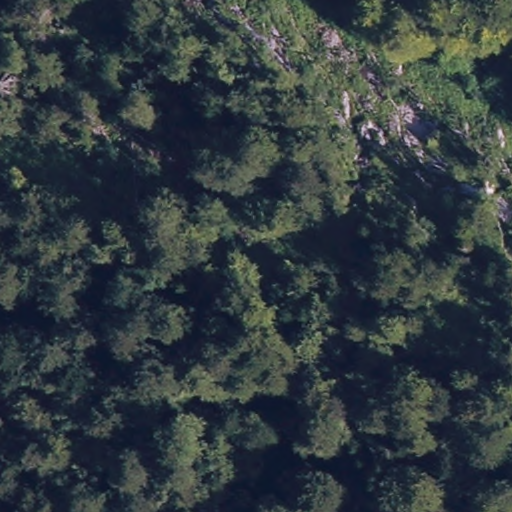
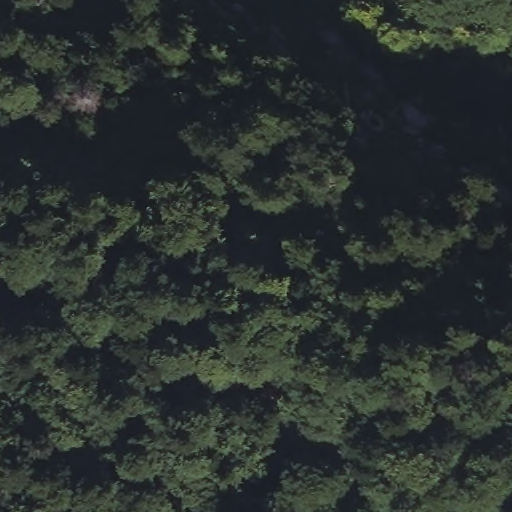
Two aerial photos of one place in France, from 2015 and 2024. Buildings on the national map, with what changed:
[]

